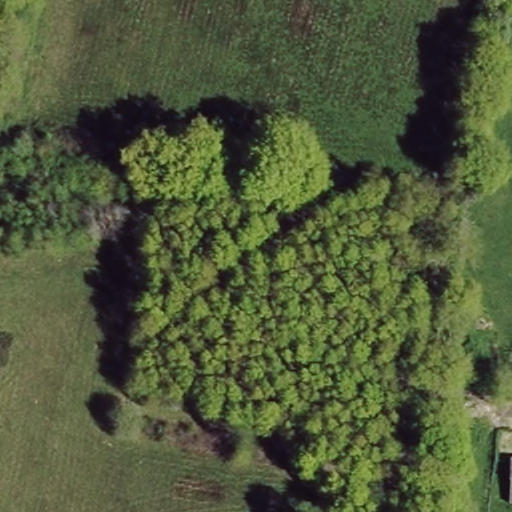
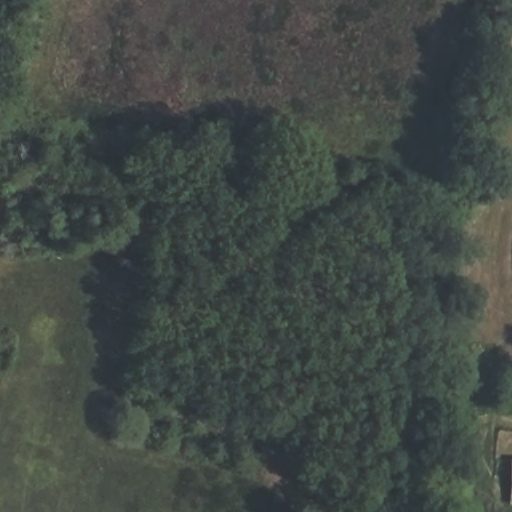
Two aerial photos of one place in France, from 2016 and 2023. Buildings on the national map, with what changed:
unchanged [(509,481),(512,456),(512,481),(509,481)]

